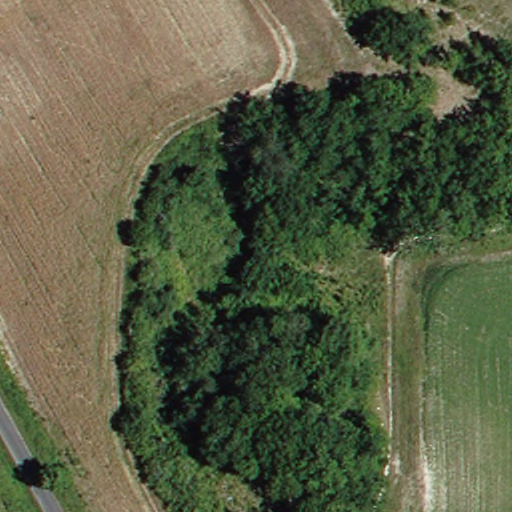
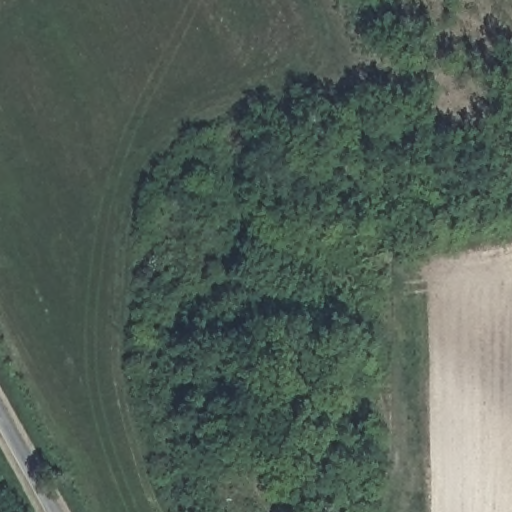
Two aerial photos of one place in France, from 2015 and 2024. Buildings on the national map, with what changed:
[]

